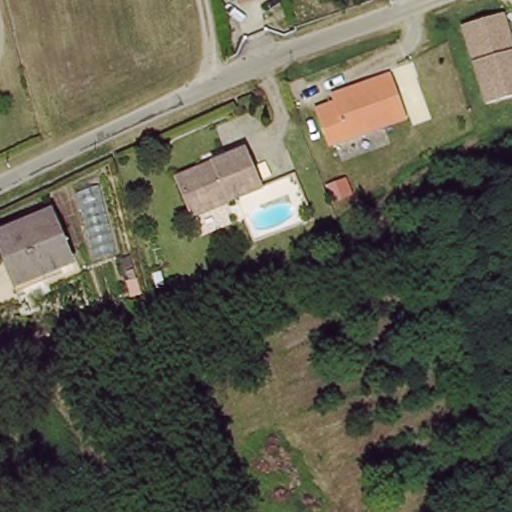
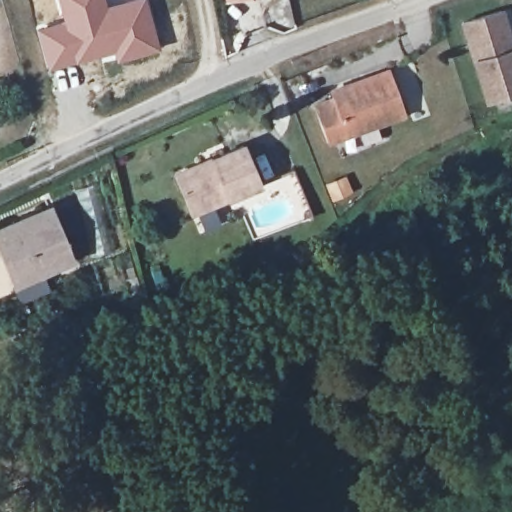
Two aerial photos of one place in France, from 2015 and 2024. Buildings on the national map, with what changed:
new [(56,0),(106,0),(107,4),(125,0),(147,0),(159,49),(115,62),(112,53),(48,71),(35,27),(62,19),(56,0)]
unchanged [(231,0),(245,0),(232,3),(231,0)]
unchanged [(460,24),(505,10),(512,33),(512,95),(484,103),(460,24)]
unchanged [(405,111),(327,140),(314,106),(333,100),(331,91),(390,69),(405,111)]
unchanged [(255,186),(187,216),(173,184),(170,177),(206,161),(238,148),(255,186)]
unchanged [(46,209),(68,260),(17,282),(0,244),(0,229),(46,209)]

